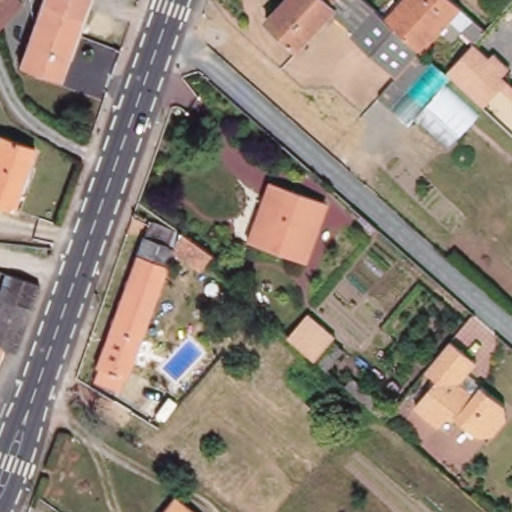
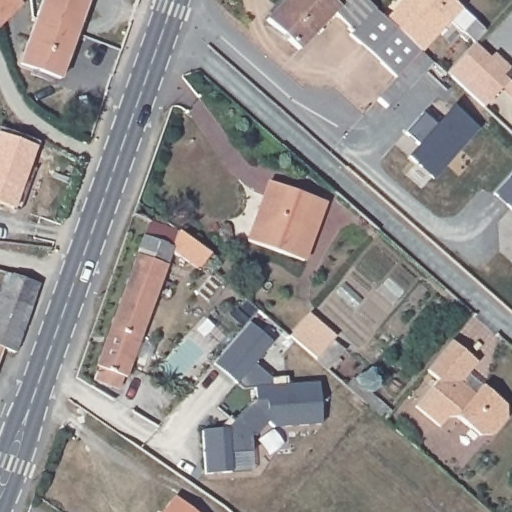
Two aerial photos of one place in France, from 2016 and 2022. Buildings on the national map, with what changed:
unchanged [(0,18),(0,0),(18,0),(19,1),(0,18)]
unchanged [(82,0),(69,37),(28,22),(36,0),(82,0)]
unchanged [(261,19),(278,0),(361,0),(381,18),(416,50),(427,60),(395,97),(382,85),(391,75),(344,32),(347,29),(327,11),(292,50),(261,19)]
unchanged [(447,0),(478,29),(470,38),(468,40),(444,19),(416,50),(381,18),(398,0),(447,0)]
unchanged [(69,37),(52,84),(12,69),(28,22),(69,37)]
unchanged [(502,87),(483,105),(448,72),(476,44),(490,57),(495,54),(510,69),(503,75),(512,83),(512,97),(502,87)]
demolished [(480,117),(448,150),(411,115),(442,80),(480,117)]
unchanged [(11,206),(0,203),(0,134),(32,146),(11,206)]
demolished [(350,155),(351,157),(345,165),(337,159),(343,150),(350,155)]
new [(512,173),(512,210),(493,194),(512,173)]
unchanged [(317,202),(297,260),(242,240),(262,181),(317,202)]
unchanged [(109,383),(92,377),(97,365),(95,365),(149,219),(175,228),(209,254),(203,262),(197,270),(171,250),(125,376),(122,375),(117,386),(109,383)]
unchanged [(17,275),(37,282),(14,351),(2,347),(0,354),(0,281),(4,271),(17,275)]
unchanged [(297,303),(325,326),(322,329),(334,340),(318,360),(278,325),(297,303)]
new [(225,427),(250,400),(253,399),(252,387),(241,388),(211,362),(247,321),(270,341),(252,362),(268,377),(283,376),(283,385),(317,383),(319,425),(272,428),(266,423),(254,435),(248,435),(249,452),(227,453),(227,471),(202,472),(200,429),(225,427)]
unchanged [(442,347),(450,337),(476,360),(466,372),(481,385),(505,406),(505,421),(494,435),(480,435),(458,416),(445,416),(437,425),(413,405),(436,378),(424,368),(442,347)]
unchanged [(317,366),(327,375),(320,383),(310,375),(317,366)]
demolished [(133,419),(132,420),(124,431),(112,423),(120,411),(121,410),(133,419)]
unchanged [(195,512),(161,512),(174,496),(195,512)]

